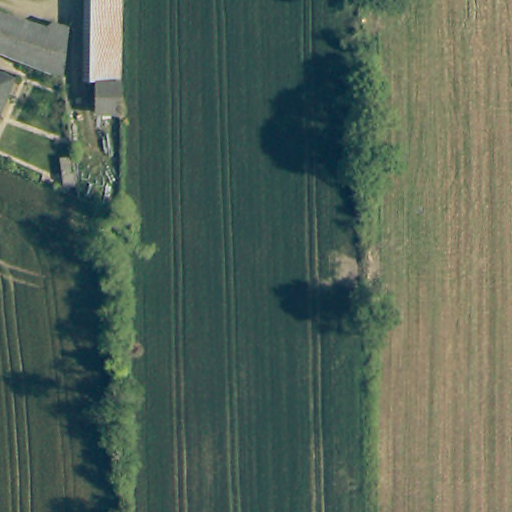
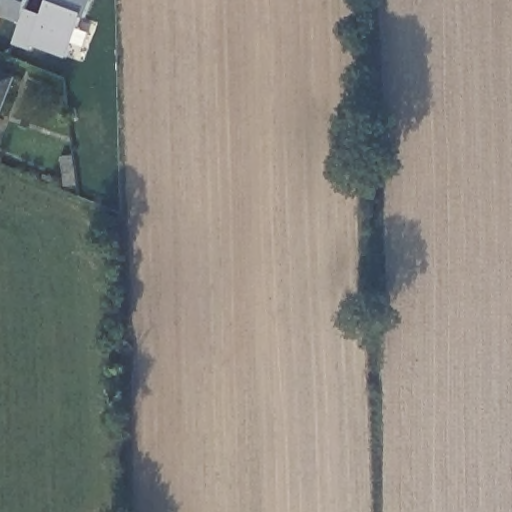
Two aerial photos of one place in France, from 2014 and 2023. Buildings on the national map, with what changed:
new [(23,16),(0,8),(0,0),(29,0),(23,16)]
new [(85,11),(82,9),(67,51),(34,39),(32,43),(15,37),(27,5),(43,11),(47,0),(89,0),(85,11)]
unchanged [(11,81),(0,109),(0,76),(11,81)]

